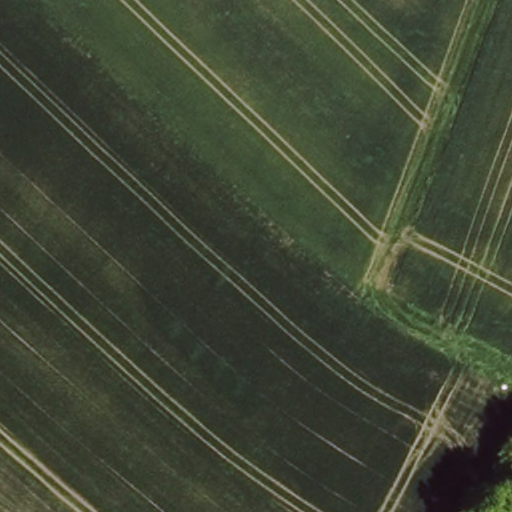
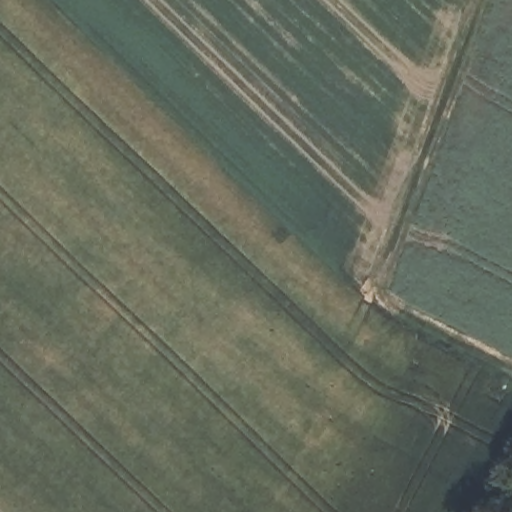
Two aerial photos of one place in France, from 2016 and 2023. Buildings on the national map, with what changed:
[]

